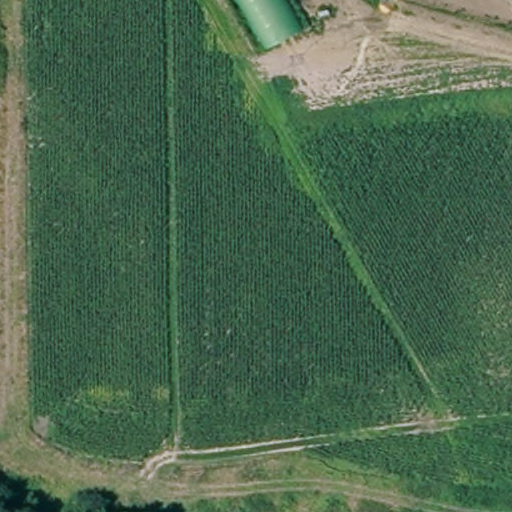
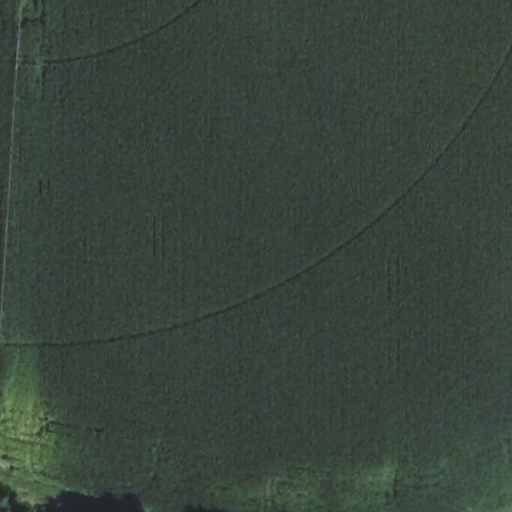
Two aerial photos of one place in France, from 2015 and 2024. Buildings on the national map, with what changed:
demolished [(301,24),(263,47),(243,0),(287,0),(301,24)]

